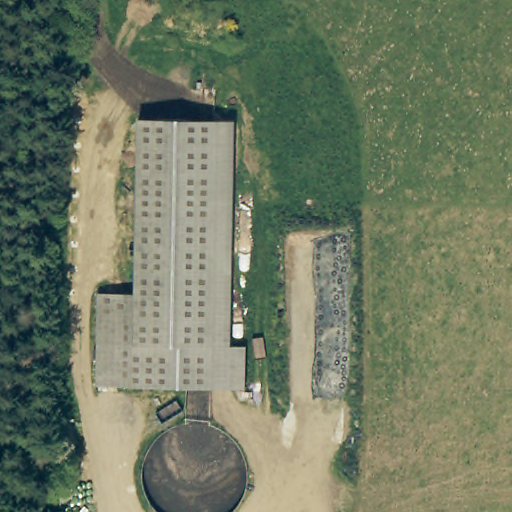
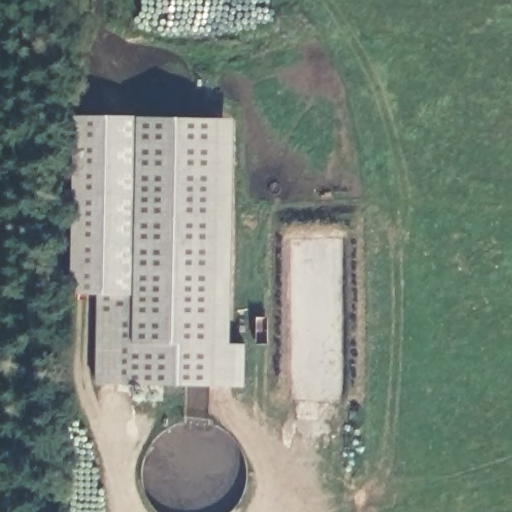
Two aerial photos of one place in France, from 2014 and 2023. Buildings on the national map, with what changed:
new [(72,291),(74,118),(129,119),(123,294),(87,293),(72,291)]
unchanged [(129,119),(205,121),(198,346),(233,347),(232,389),(121,386),(124,294),(123,294),(129,119)]
unchanged [(230,123),(225,346),(198,346),(205,121),(230,123)]
unchanged [(87,293),(123,294),(124,294),(121,386),(84,384),(87,293)]

